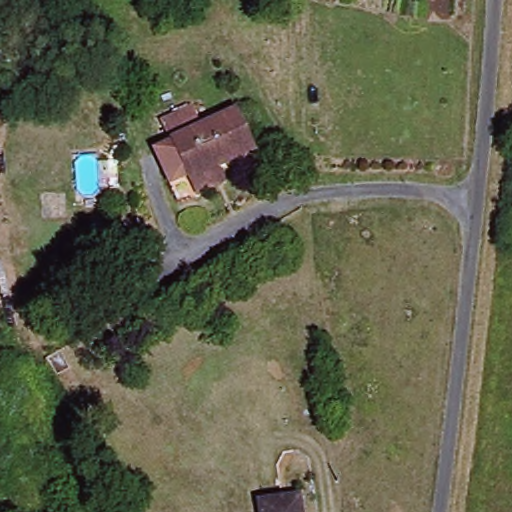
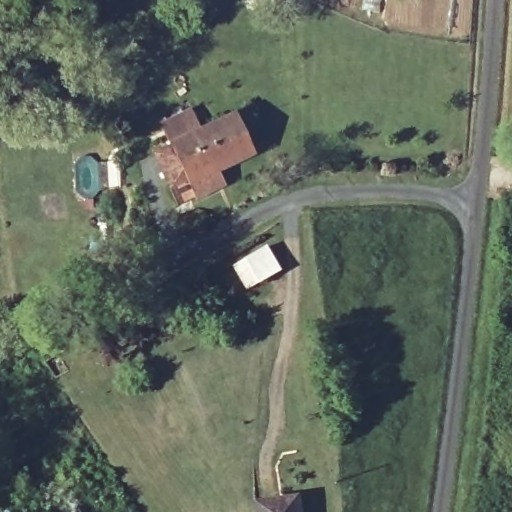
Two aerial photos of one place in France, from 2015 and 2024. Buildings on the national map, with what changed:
unchanged [(200,199),(160,129),(189,113),(200,131),(233,112),(255,151),(218,171),(225,185),(200,199)]
new [(267,247),(282,271),(248,291),(234,267),(267,247)]
unchanged [(299,512),(257,512),(256,503),(297,497),(299,512)]

